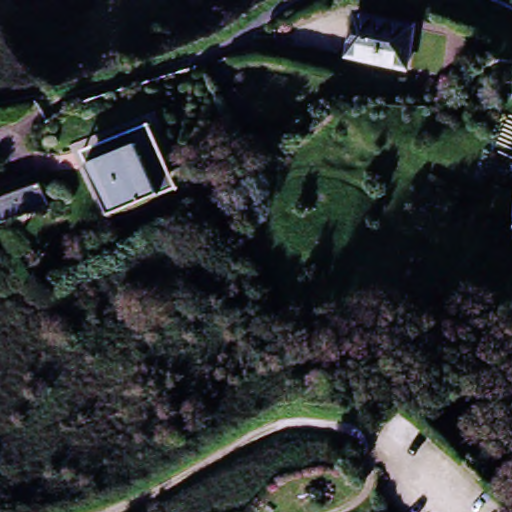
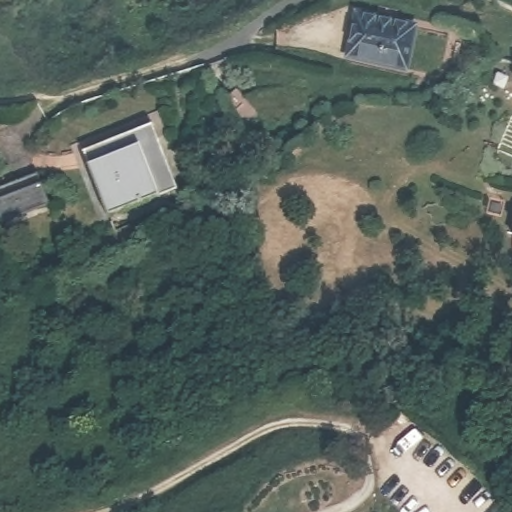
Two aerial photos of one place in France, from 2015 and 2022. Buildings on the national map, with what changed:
unchanged [(414,28),(405,66),(346,50),(354,12),(414,28)]
unchanged [(213,92),(229,83),(249,115),(233,125),(213,92)]
unchanged [(159,195),(109,219),(84,169),(105,158),(103,154),(131,140),(129,134),(144,126),(165,167),(177,187),(159,195)]
unchanged [(7,225),(0,211),(0,191),(38,175),(52,206),(7,225)]

